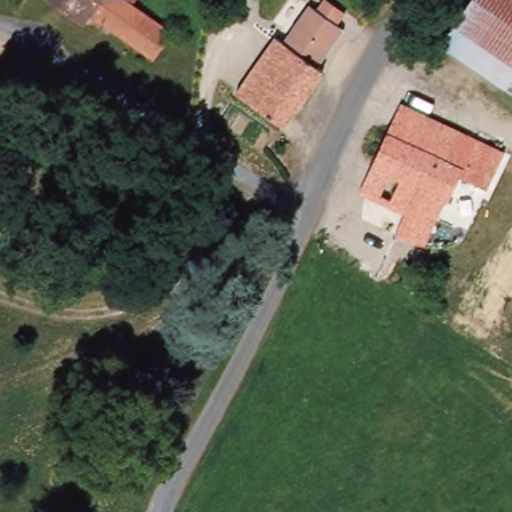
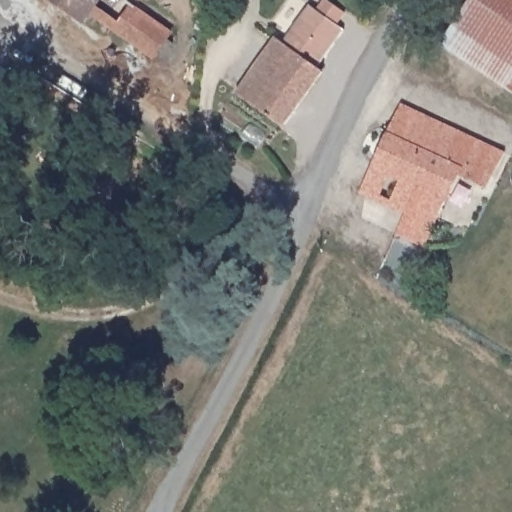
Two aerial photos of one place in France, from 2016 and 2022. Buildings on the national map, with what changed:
unchanged [(170,29),(154,54),(93,15),(88,21),(57,0),(133,0),(141,6),(170,29)]
unchanged [(145,0),(141,6),(133,0),(145,0)]
unchanged [(512,0),(512,91),(482,71),(447,46),(442,43),(474,0),(512,0)]
unchanged [(254,75),(280,41),(287,46),(320,3),(352,26),(317,71),(325,76),(286,128),(240,95),(254,75)]
unchanged [(361,171),(371,176),(371,175),(376,165),(403,108),(405,104),(411,106),(448,124),(502,149),(485,184),(462,173),(455,188),(447,204),(427,246),(397,232),(406,213),(375,199),(368,212),(358,210),(343,208),(361,171)]

